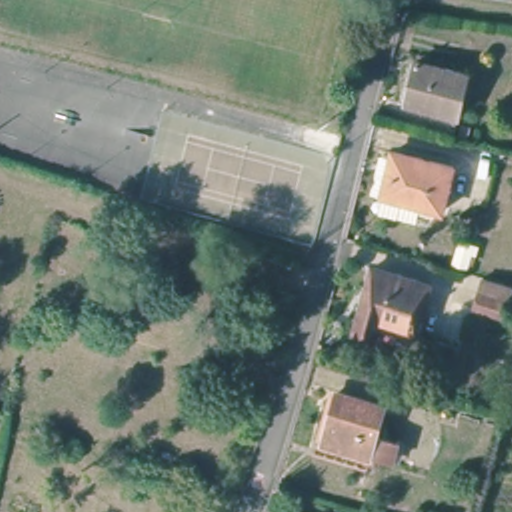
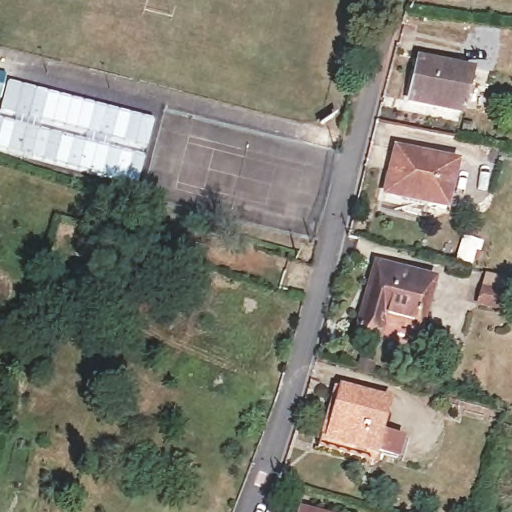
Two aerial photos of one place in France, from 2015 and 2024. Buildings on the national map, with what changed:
unchanged [(467,66),(458,107),(401,95),(409,55),(467,66)]
new [(3,80),(154,119),(138,189),(0,152),(0,99),(0,73),(4,74),(3,80)]
unchanged [(388,162),(392,144),(460,163),(449,207),(388,191),(382,189),(388,162)]
unchanged [(427,277),(414,327),(375,318),(371,332),(351,327),(368,262),(427,277)]
unchanged [(482,307),(486,292),(512,299),(512,313),(512,315),(482,307)]
unchanged [(389,457),(367,451),(319,439),(333,386),(380,398),(372,430),(394,436),(389,457)]

